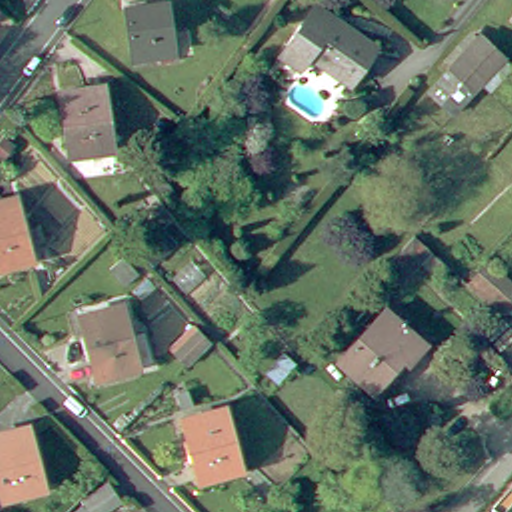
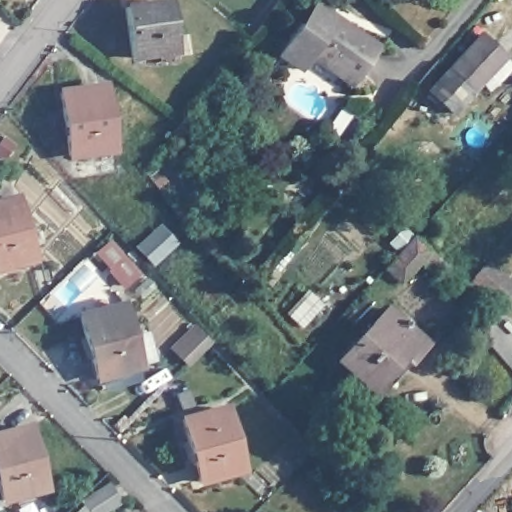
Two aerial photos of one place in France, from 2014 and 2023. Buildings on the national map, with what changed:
unchanged [(127,6),(167,0),(174,50),(134,56),(127,6)]
unchanged [(313,64),(305,77),(282,61),(295,42),(298,44),(320,12),(333,20),(334,31),(342,36),(345,30),(355,36),(327,73),(313,64)]
unchanged [(380,54),(353,91),(327,73),(355,36),(380,54)]
unchanged [(435,93),(455,71),(486,38),(510,60),(478,93),(457,115),(435,93)]
unchanged [(105,86),(113,151),(70,157),(62,92),(105,86)]
unchanged [(18,194),(35,254),(0,264),(0,200),(18,194)]
unchanged [(382,265),(390,256),(410,233),(426,247),(405,270),(397,278),(382,265)]
unchanged [(125,303),(144,364),(104,377),(83,315),(125,303)]
unchanged [(392,310),(430,346),(412,367),(401,358),(374,387),(345,361),(392,310)]
unchanged [(172,390),(182,387),(187,403),(177,406),(172,390)]
unchanged [(227,406),(247,466),(206,479),(187,418),(227,406)]
unchanged [(30,427),(45,488),(5,500),(0,483),(0,436),(30,427)]
unchanged [(108,512),(91,512),(85,502),(111,485),(122,502),(108,512)]
unchanged [(83,512),(76,512),(80,508),(83,512)]

